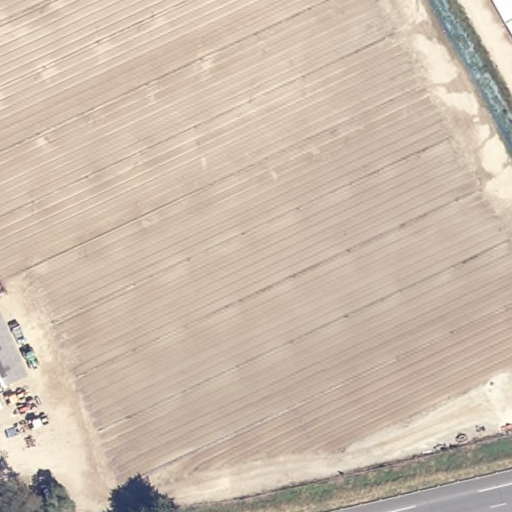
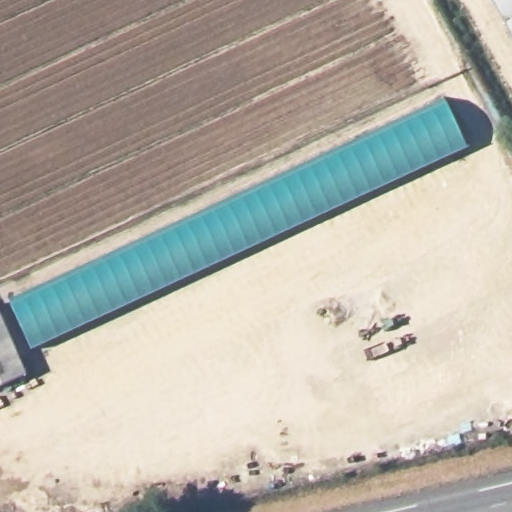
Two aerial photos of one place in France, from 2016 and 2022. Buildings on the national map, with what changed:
unchanged [(492,0),(512,0),(512,36),(492,0)]
new [(466,149),(31,350),(11,304),(446,103),(466,149)]
unchanged [(0,386),(0,309),(30,375),(0,386)]

